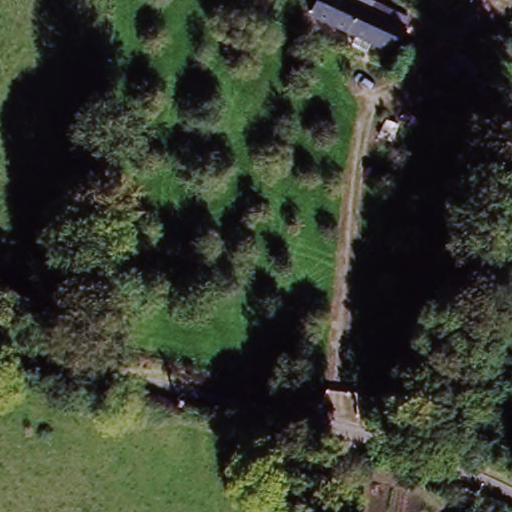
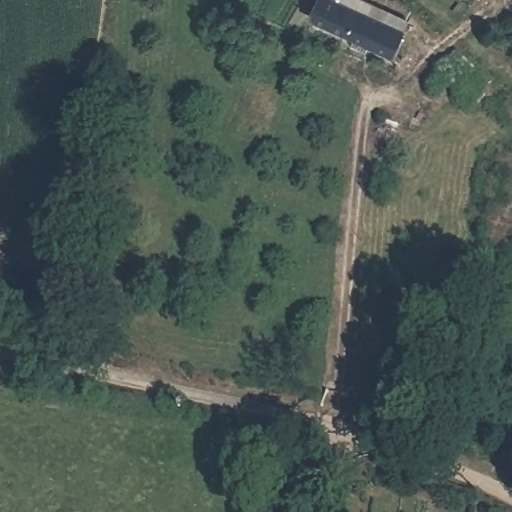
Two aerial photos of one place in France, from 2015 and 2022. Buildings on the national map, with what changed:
unchanged [(406,30),(396,55),(314,18),(321,0),(340,0),(406,30)]
unchanged [(461,0),(463,0),(462,1),(461,0)]

